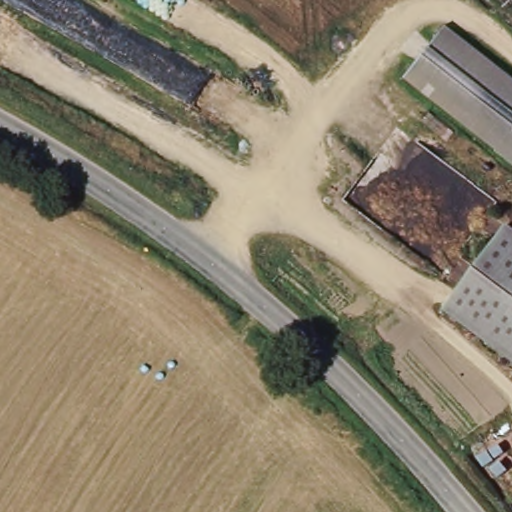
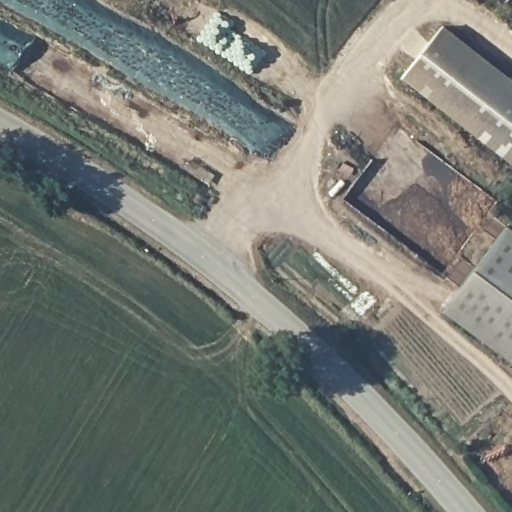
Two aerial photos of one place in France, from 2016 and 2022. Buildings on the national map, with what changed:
unchanged [(512,82),(512,166),(401,79),(441,27),(512,82)]
unchanged [(505,225),(512,230),(512,359),(443,308),(505,225)]

